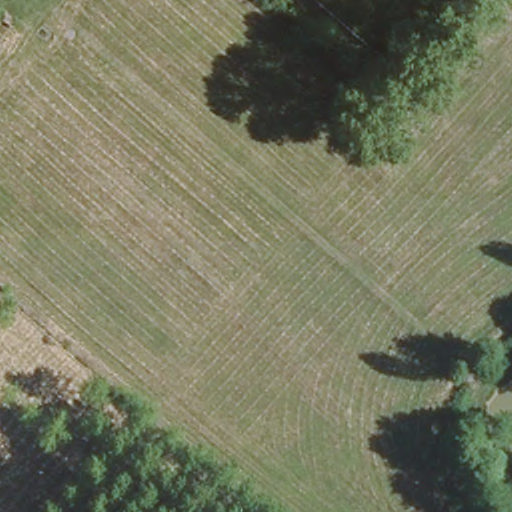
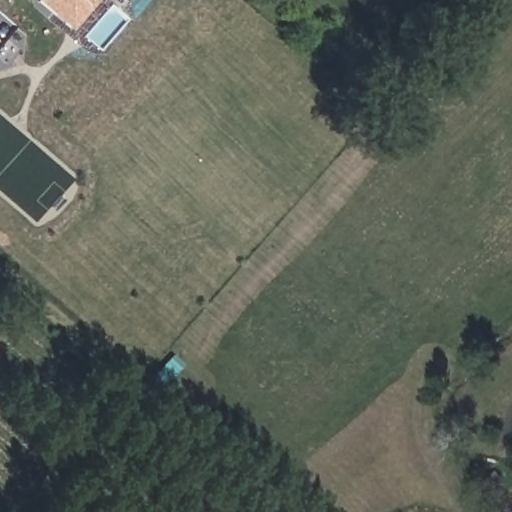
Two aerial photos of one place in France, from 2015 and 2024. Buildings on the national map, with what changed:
new [(85,10),(89,13),(72,32),(35,2),(37,0),(94,0),(85,10)]

